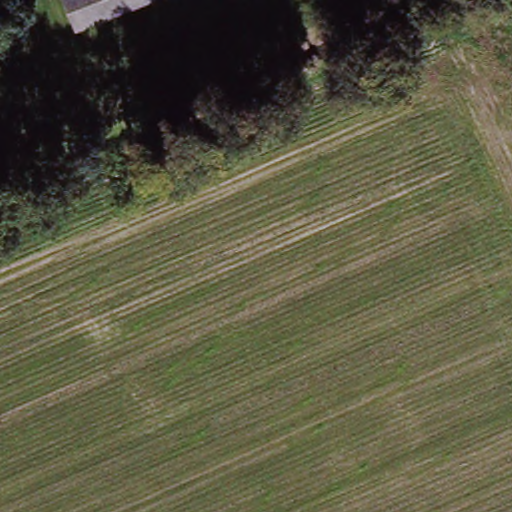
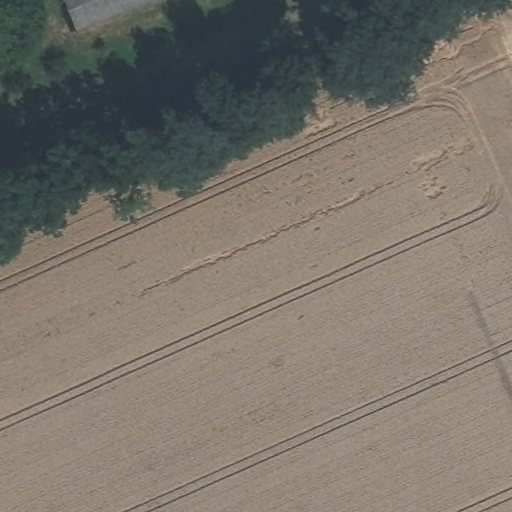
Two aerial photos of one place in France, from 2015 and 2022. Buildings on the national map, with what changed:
unchanged [(78,36),(63,0),(164,0),(78,36)]

